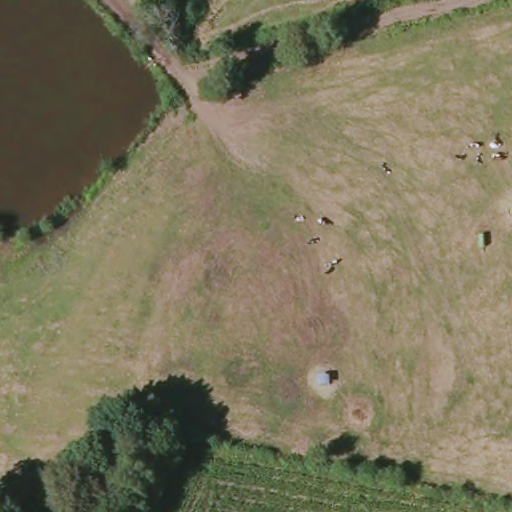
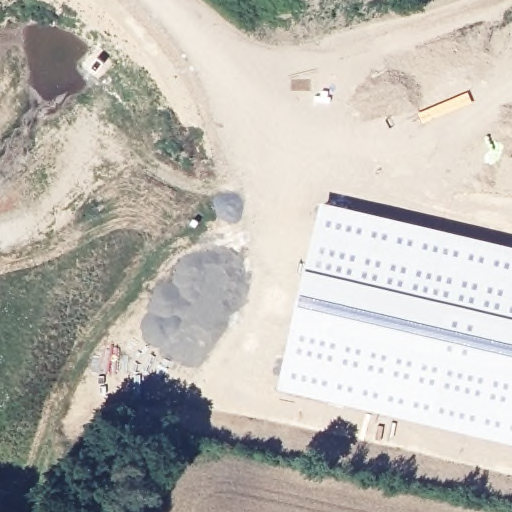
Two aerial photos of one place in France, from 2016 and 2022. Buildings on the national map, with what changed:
new [(331,196),(512,243),(512,446),(281,388),(331,196)]

